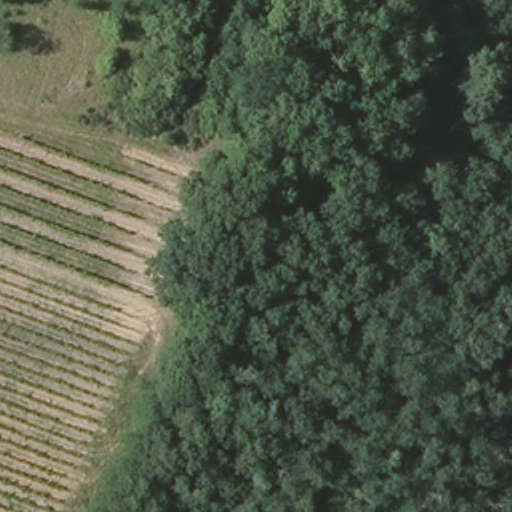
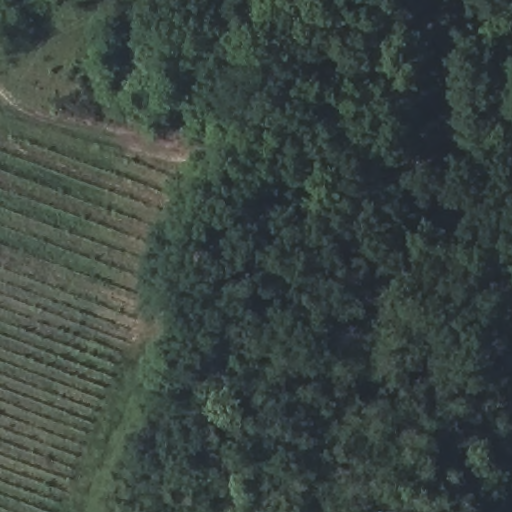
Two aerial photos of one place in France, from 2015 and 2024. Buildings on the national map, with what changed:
[]

